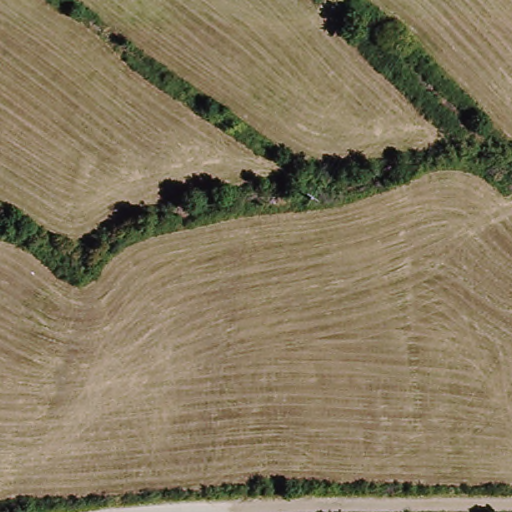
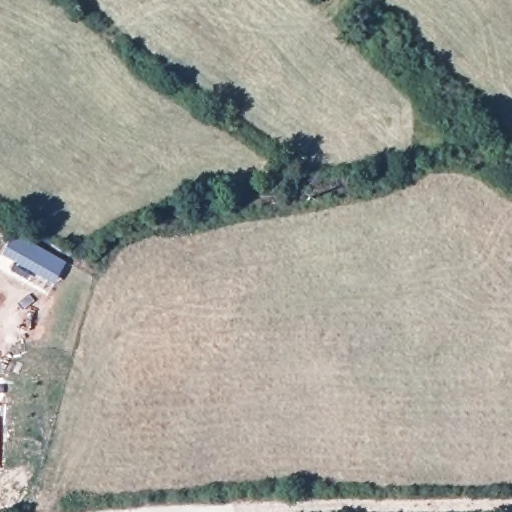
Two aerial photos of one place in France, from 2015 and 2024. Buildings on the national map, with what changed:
new [(67,261),(53,284),(1,256),(15,232),(67,261)]

